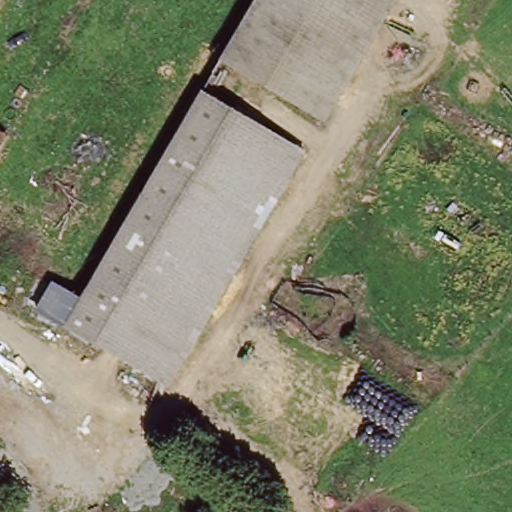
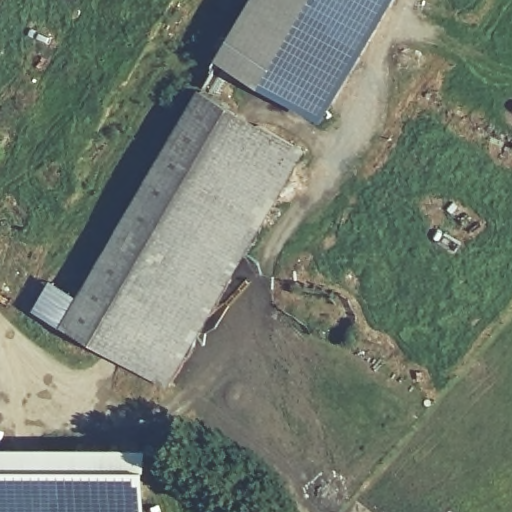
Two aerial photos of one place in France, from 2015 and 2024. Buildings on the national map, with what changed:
unchanged [(269,0),(386,0),(315,121),(227,71),(269,0)]
unchanged [(29,313),(49,280),(84,297),(203,93),(306,152),(169,385),(29,313)]
new [(151,512),(0,512),(0,455),(150,454),(151,512)]

